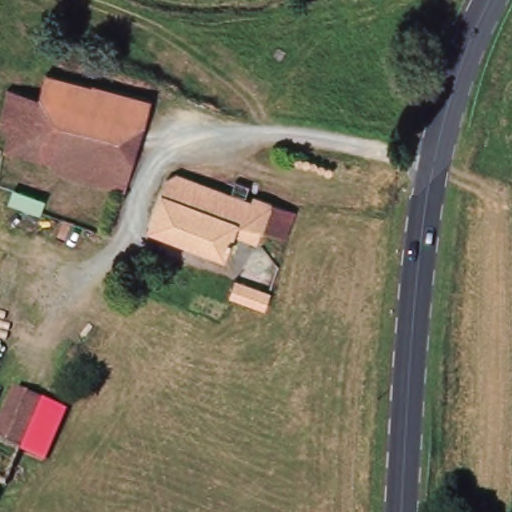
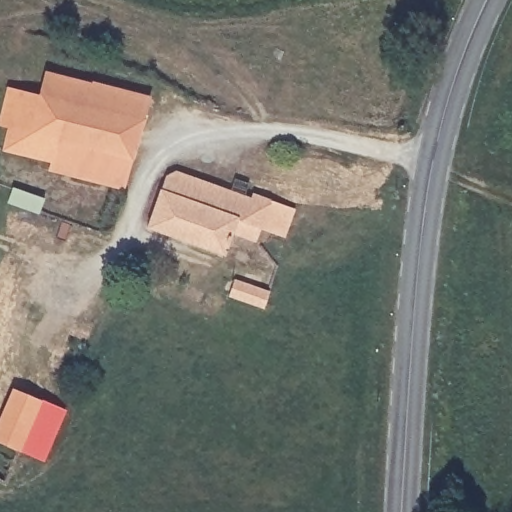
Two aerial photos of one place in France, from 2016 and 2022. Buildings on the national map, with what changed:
unchanged [(68,106),(74,80),(151,100),(128,194),(51,174),(53,166),(6,154),(12,133),(0,131),(9,99),(10,95),(13,91),(68,106)]
unchanged [(169,179),(178,172),(233,192),(239,179),(254,184),(248,198),(253,200),(255,195),(274,203),(262,243),(237,234),(229,259),(152,229),(169,179)]
unchanged [(11,193),(40,204),(34,219),(4,207),(11,193)]
unchanged [(257,320),(222,305),(228,290),(230,284),(267,298),(257,320)]
unchanged [(0,483),(0,430),(19,391),(48,404),(24,453),(9,487),(0,483)]
unchanged [(49,464),(24,453),(48,404),(70,415),(49,464)]

